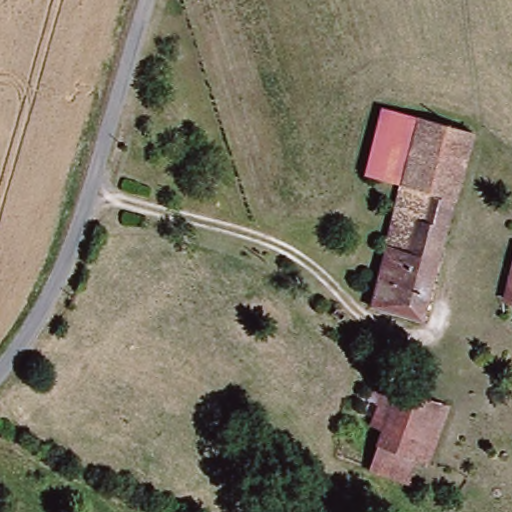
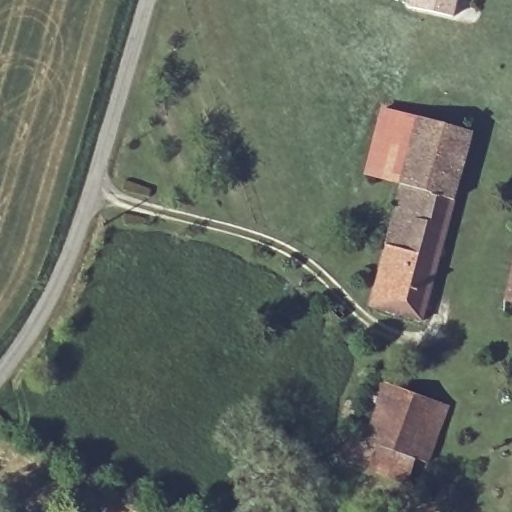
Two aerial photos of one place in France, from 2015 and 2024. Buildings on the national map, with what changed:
new [(458,0),(455,18),(408,6),(409,0),(458,0)]
unchanged [(400,110),(427,117),(406,192),(379,182),(400,110)]
unchanged [(478,132),(424,324),(374,311),(406,192),(427,117),(478,132)]
unchanged [(510,296),(512,286),(512,297),(510,296)]
unchanged [(437,467),(368,449),(381,384),(452,400),(437,467)]

